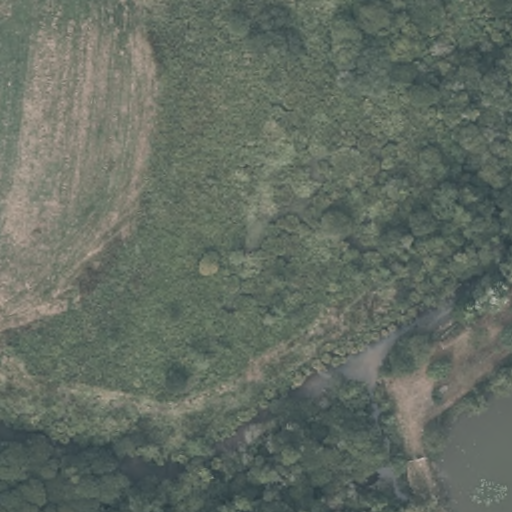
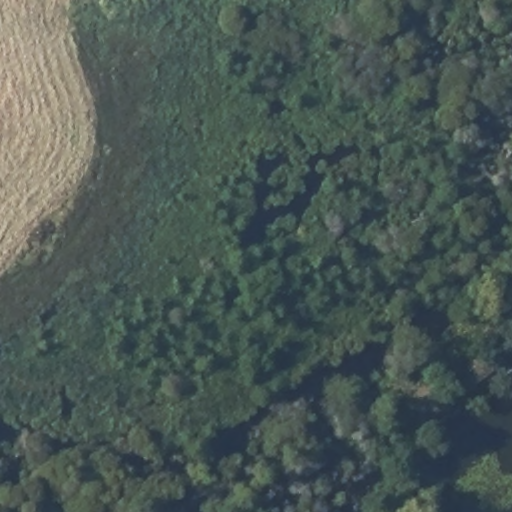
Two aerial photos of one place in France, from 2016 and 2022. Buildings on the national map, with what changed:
[]

